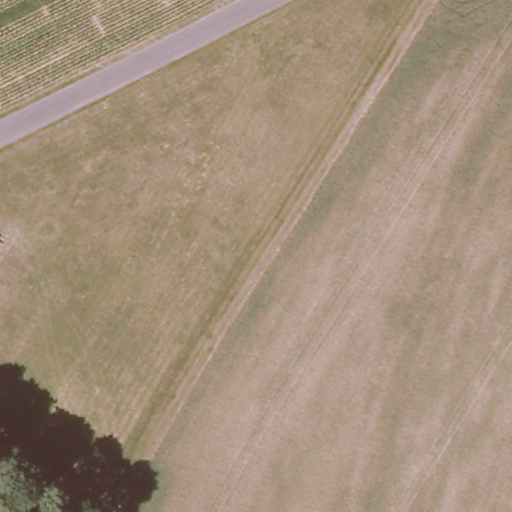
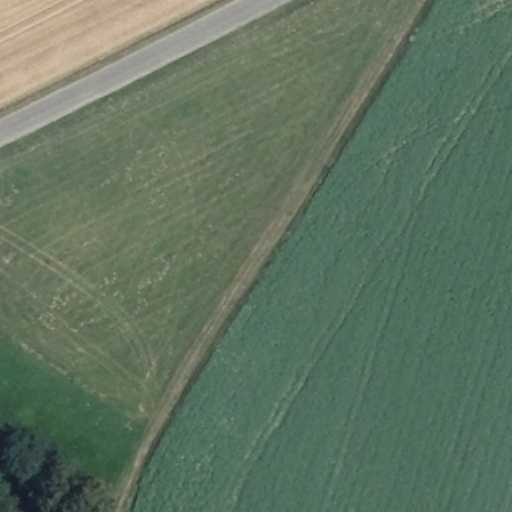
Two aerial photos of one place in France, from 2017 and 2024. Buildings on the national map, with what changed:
[]

